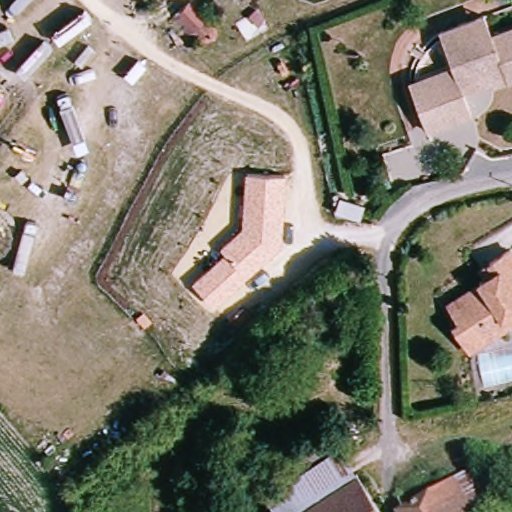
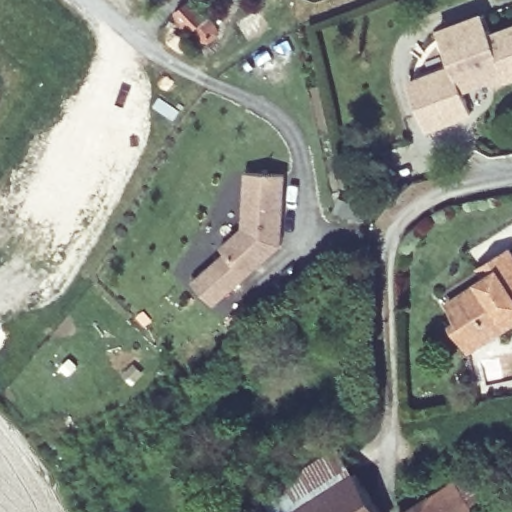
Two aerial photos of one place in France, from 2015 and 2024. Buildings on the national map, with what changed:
unchanged [(198,0),(212,15),(207,20),(218,34),(202,46),(191,31),(189,34),(174,14),(191,0),(198,0)]
unchanged [(462,91),(470,116),(425,131),(411,86),(452,71),(445,49),(440,34),(483,17),(489,32),(492,38),(512,31),(512,81),(501,85),(490,89),(487,81),(462,91)]
unchanged [(286,175),(283,244),(212,304),(192,281),(225,253),(219,248),(242,226),(246,173),(286,175)]
unchanged [(458,329),(464,324),(456,310),(483,290),(482,286),(491,280),(488,277),(485,273),(495,266),(512,255),(512,330),(488,345),(474,355),(458,329)]
unchanged [(307,510),(291,486),(342,452),(358,476),(307,510)]
unchanged [(358,476),(383,512),(303,512),(307,510),(358,476)]
unchanged [(453,487),(467,511),(468,512),(411,512),(453,487)]

